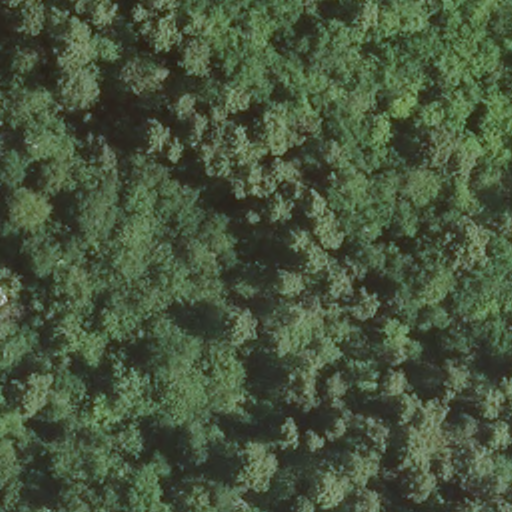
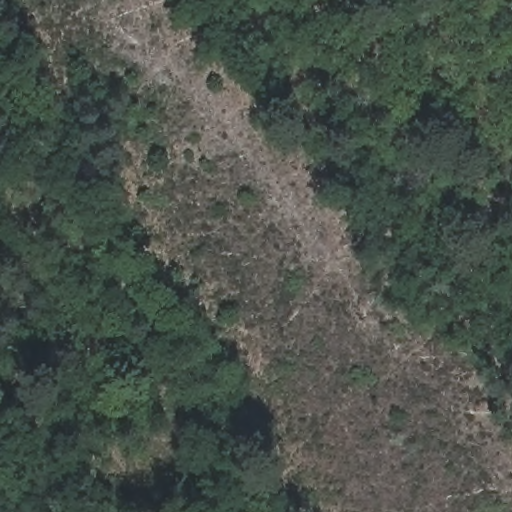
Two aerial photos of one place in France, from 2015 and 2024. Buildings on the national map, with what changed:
unchanged [(0,301),(0,283),(9,295),(0,301)]

